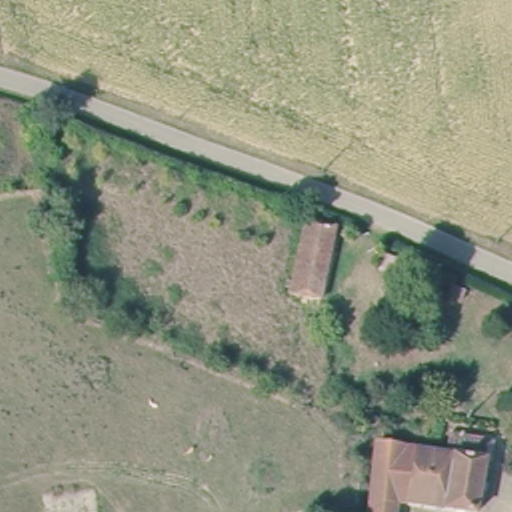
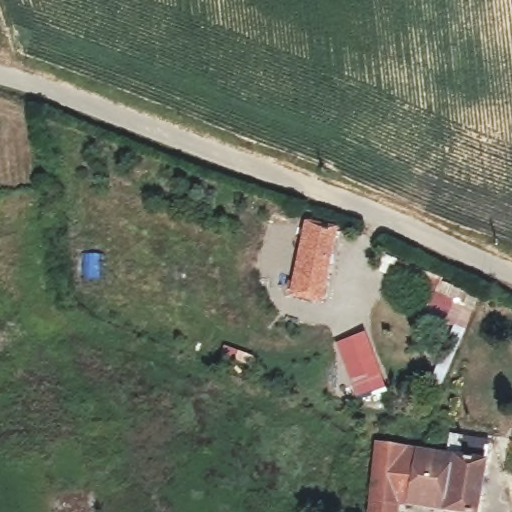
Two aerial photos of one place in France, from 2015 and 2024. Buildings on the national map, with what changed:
unchanged [(336,224),(318,302),(287,294),(305,218),(336,224)]
new [(365,332),(387,393),(357,403),(336,344),(365,332)]
unchanged [(448,462),(452,441),(492,445),(490,468),(486,512),(470,512),(404,504),(403,512),(364,512),(373,450),(448,462)]

